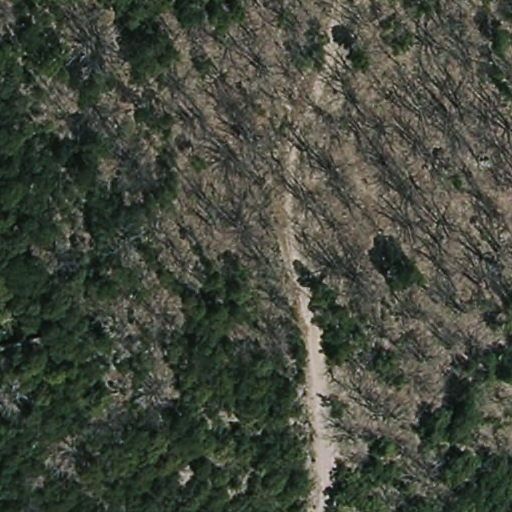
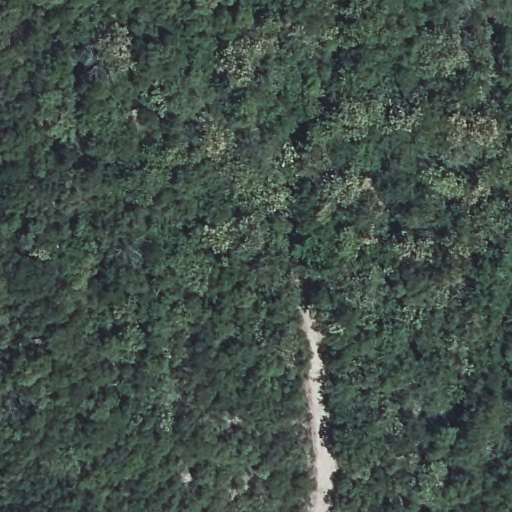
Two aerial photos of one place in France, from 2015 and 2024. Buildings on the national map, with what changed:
unchanged [(30,336),(37,363),(0,371),(0,343),(30,336)]

